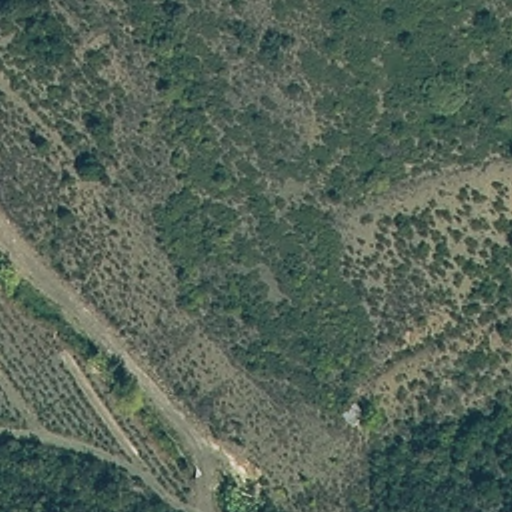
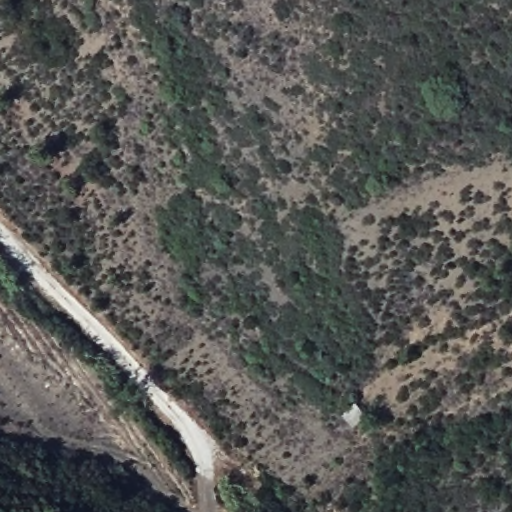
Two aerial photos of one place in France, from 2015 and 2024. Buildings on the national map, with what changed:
unchanged [(371,411),(354,423),(339,410),(358,396),(371,411)]

